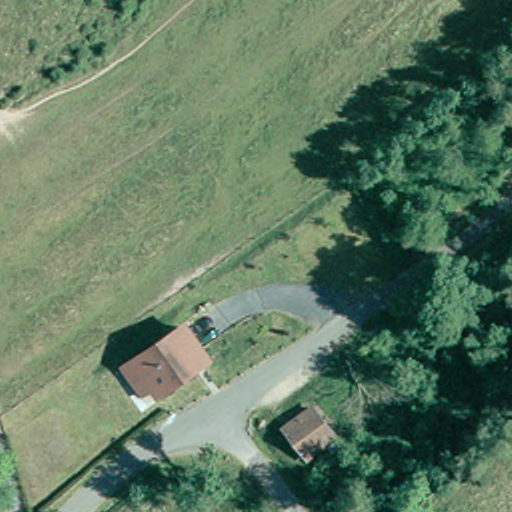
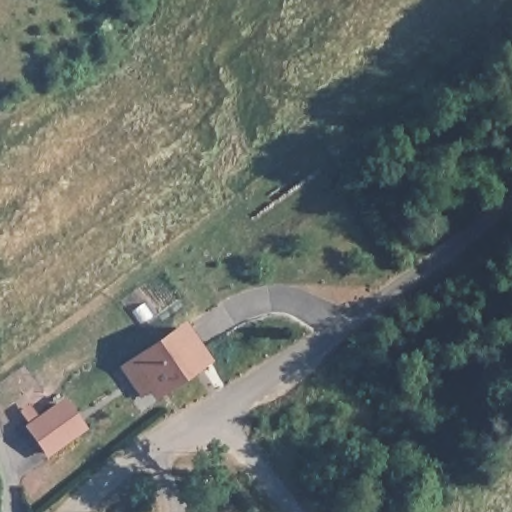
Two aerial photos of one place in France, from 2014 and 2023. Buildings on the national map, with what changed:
unchanged [(131,361),(142,353),(191,318),(214,350),(166,384),(159,375),(147,384),(131,361)]
new [(89,429),(47,457),(25,425),(65,396),(89,429)]
unchanged [(302,454),(282,426),(311,405),(331,433),(302,454)]

